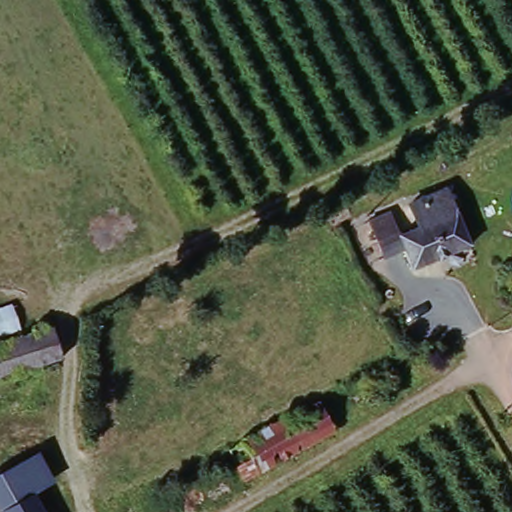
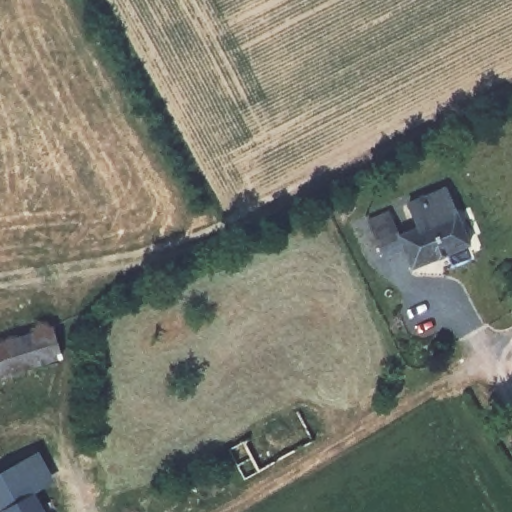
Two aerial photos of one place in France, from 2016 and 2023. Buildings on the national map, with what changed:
unchanged [(411,270),(403,250),(382,257),(368,221),(390,212),(399,236),(418,229),(409,205),(447,190),(469,247),(411,270)]
unchanged [(51,326),(52,331),(60,354),(0,374),(0,344),(51,326)]
unchanged [(248,443),(320,407),(333,436),(262,472),(248,443)]
unchanged [(35,448),(51,478),(31,490),(0,506),(0,467),(35,448)]
unchanged [(43,512),(1,512),(0,511),(0,506),(31,490),(43,512)]

